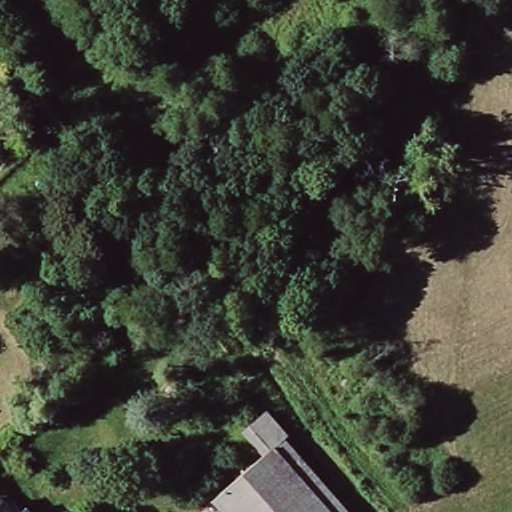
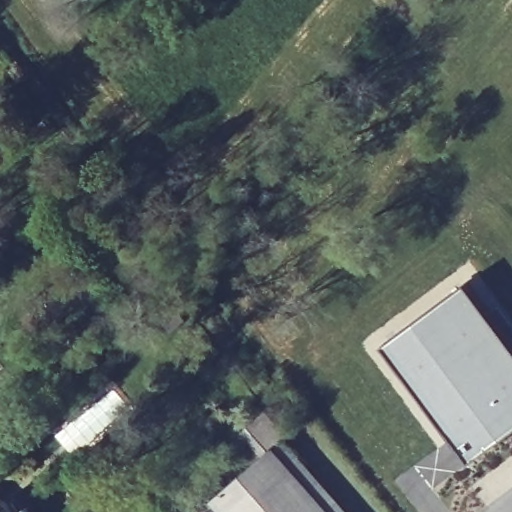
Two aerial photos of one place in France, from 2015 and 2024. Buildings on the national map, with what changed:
unchanged [(101,255),(93,247),(110,231),(118,239),(101,255)]
new [(466,280),(512,343),(512,428),(468,460),(382,342),(466,280)]
unchanged [(166,317),(158,309),(174,294),(182,303),(166,317)]
new [(73,424),(113,389),(126,409),(103,434),(100,432),(92,443),(88,441),(85,445),(81,442),(79,445),(65,435),(73,424)]
unchanged [(204,507),(255,463),(235,439),(258,420),(278,443),(275,446),(312,487),(334,512),(209,512),(204,507)]
unchanged [(0,501),(2,504),(3,503),(11,512),(0,512),(0,501)]
unchanged [(25,509),(28,512),(22,512),(25,509)]

